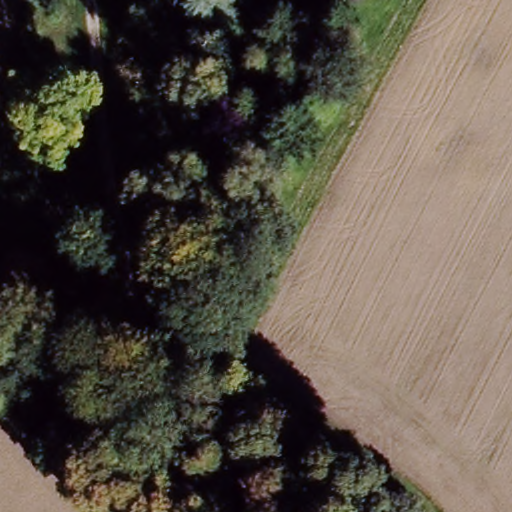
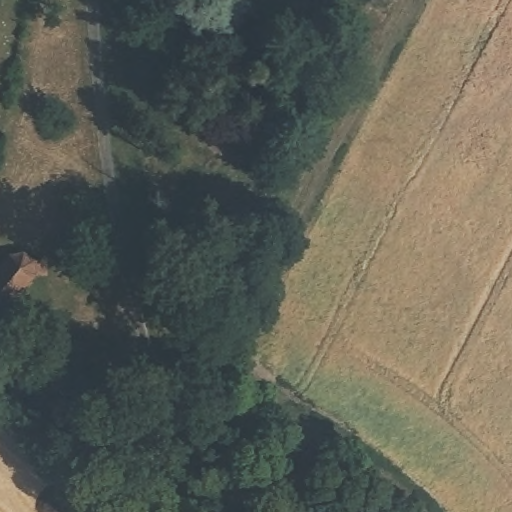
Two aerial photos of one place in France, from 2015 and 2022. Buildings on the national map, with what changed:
unchanged [(197,229),(206,232),(209,237),(209,244),(209,247),(208,251),(204,253),(202,255),(198,256),(188,253),(184,248),(184,238),(189,232),(197,229)]
unchanged [(0,256),(8,244),(33,262),(0,308),(0,256)]

